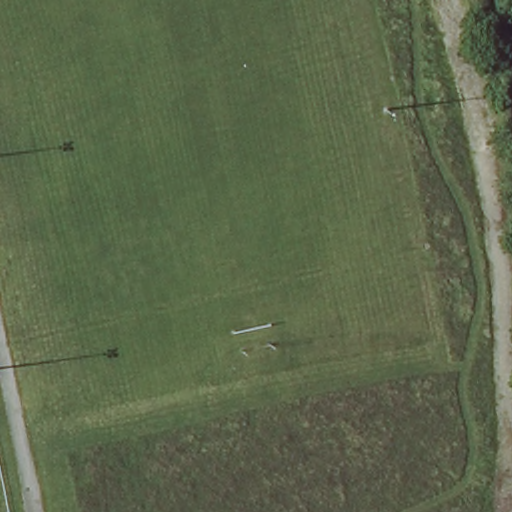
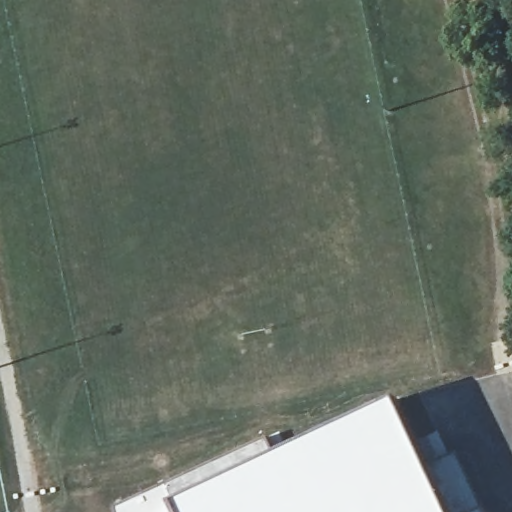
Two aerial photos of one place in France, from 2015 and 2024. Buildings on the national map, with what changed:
new [(449,512),(122,512),(121,507),(270,437),(280,458),(387,405),(399,402),(449,512)]

